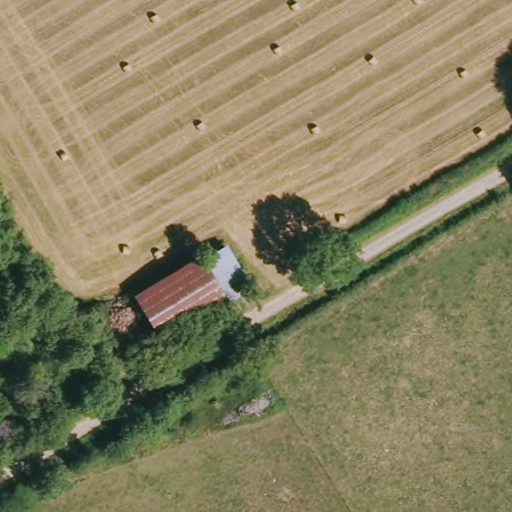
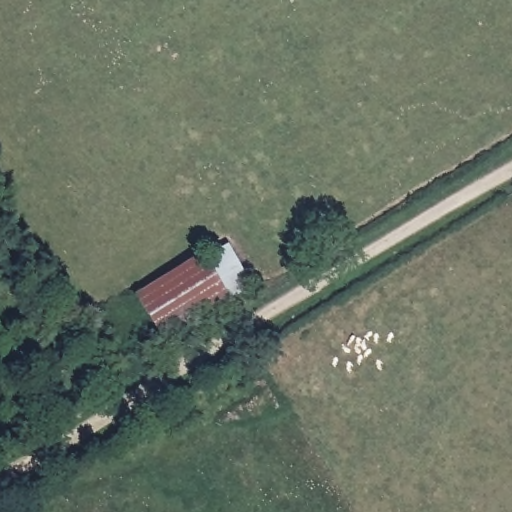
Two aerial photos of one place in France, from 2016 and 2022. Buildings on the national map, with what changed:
unchanged [(229,295),(232,300),(161,339),(136,293),(205,253),(207,257),(229,244),(252,281),(229,295)]
unchanged [(108,347),(94,355),(82,333),(94,325),(108,347)]

